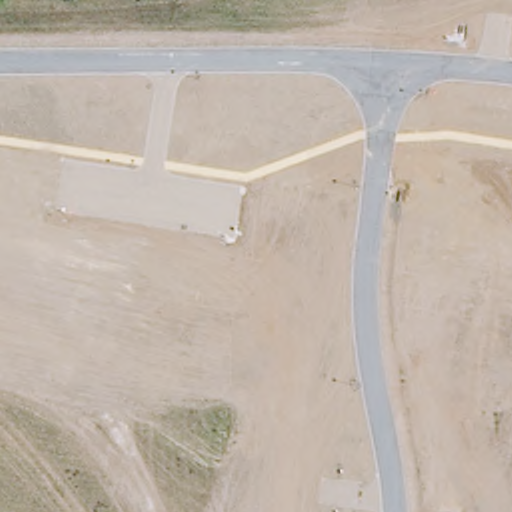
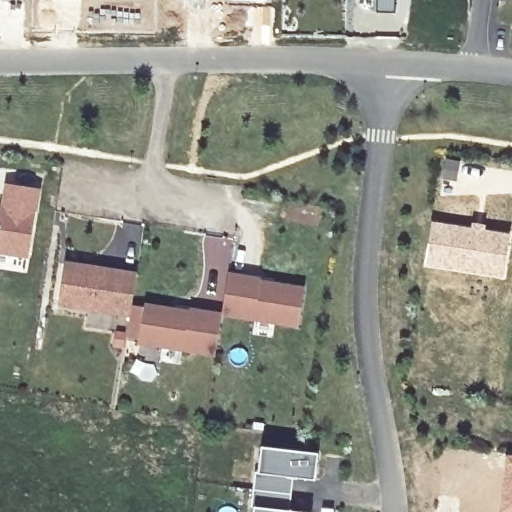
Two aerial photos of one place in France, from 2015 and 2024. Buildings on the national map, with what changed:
new [(266,0),(266,3),(228,2),(228,0),(266,0)]
new [(378,12),(378,0),(396,0),(396,12),(378,12)]
new [(3,210),(7,186),(38,191),(27,259),(0,254),(0,209),(3,210)]
new [(431,220),(511,232),(504,279),(423,266),(431,220)]
new [(137,271),(133,304),(144,305),(144,303),(189,308),(189,307),(222,310),(227,272),(261,276),(260,279),(304,286),(298,328),(220,317),(215,356),(139,345),(140,341),(127,338),(130,317),(58,307),(64,260),(137,271)]
new [(256,505),(260,472),(263,446),(320,453),(317,478),(298,477),(295,511),(299,512),(255,512),(256,505)]
new [(510,458),(512,458),(512,512),(498,512),(504,470),(505,457),(510,458)]

